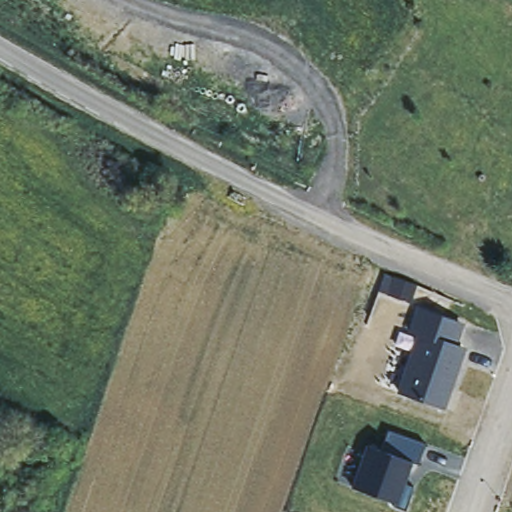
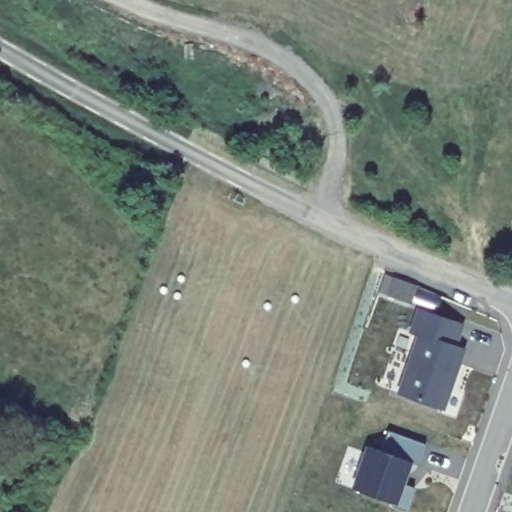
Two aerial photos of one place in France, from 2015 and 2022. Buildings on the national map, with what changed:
unchanged [(410,303),(388,295),(378,292),(385,274),(394,277),(417,285),(410,303)]
unchanged [(420,341),(408,331),(419,312),(452,326),(445,345),(468,354),(446,405),(398,392),(420,341)]
unchanged [(371,442),(387,448),(393,432),(428,443),(424,461),(414,458),(407,480),(419,485),(408,508),(399,506),(399,500),(355,486),(371,442)]

